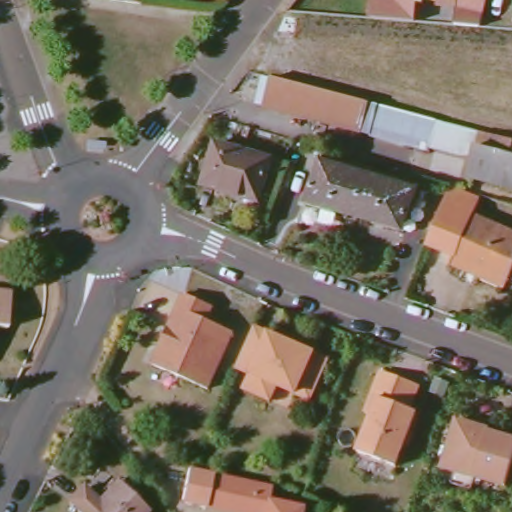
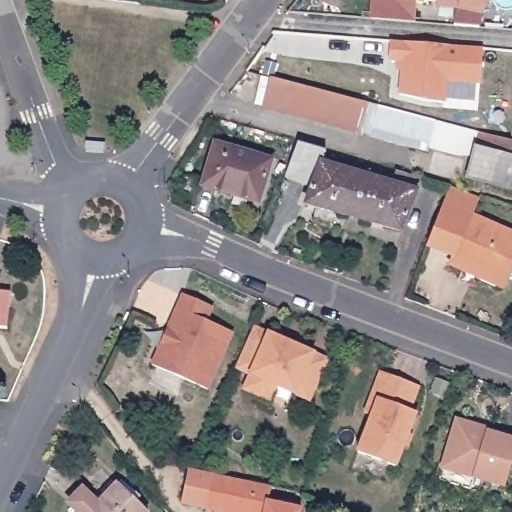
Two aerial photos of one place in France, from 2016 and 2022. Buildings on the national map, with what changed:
new [(368,20),(370,0),(393,0),(391,13),(415,15),(415,23),(368,20)]
unchanged [(391,13),(393,0),(417,0),(415,15),(391,13)]
unchanged [(454,25),(456,9),(416,6),(417,0),(487,0),(480,28),(454,25)]
new [(447,81),(445,103),(400,94),(400,71),(395,71),(394,62),(388,62),(390,41),(481,47),(480,83),(447,81)]
unchanged [(351,126),(258,100),(267,70),(360,96),(351,126)]
unchanged [(432,119),(425,150),(351,126),(360,96),(432,119)]
unchanged [(480,129),(475,145),(471,144),(466,162),(425,150),(432,119),(480,129)]
unchanged [(475,145),(480,129),(510,137),(505,153),(512,155),(512,188),(463,174),(466,162),(471,144),(475,145)]
unchanged [(236,195),(203,186),(215,143),(271,159),(261,195),(260,202),(236,195)]
new [(300,143),(326,150),(325,155),(314,185),(287,176),(300,143)]
unchanged [(307,205),(325,155),(420,183),(402,231),(307,205)]
unchanged [(470,268),(451,261),(456,250),(444,245),(450,229),(435,224),(450,184),(466,189),(460,205),(512,227),(512,277),(509,285),(470,268)]
unchanged [(151,362),(160,342),(163,344),(170,328),(167,326),(181,291),(210,303),(203,318),(231,329),(206,387),(151,362)]
unchanged [(2,328),(0,328),(0,294),(5,294),(2,328)]
unchanged [(272,383),(265,398),(243,389),(250,375),(234,369),(253,325),(327,358),(309,399),(272,383)]
unchanged [(357,452),(371,415),(365,412),(380,371),(416,385),(407,411),(414,413),(395,466),(357,452)]
unchanged [(442,466),(455,419),(476,426),(475,430),(486,433),(487,430),(512,438),(512,457),(504,485),(442,466)]
unchanged [(204,503),(211,468),(271,480),(268,497),(301,504),(299,512),(251,512),(204,503)]
unchanged [(70,504),(82,489),(100,502),(116,484),(145,511),(144,512),(79,512),(70,504)]

